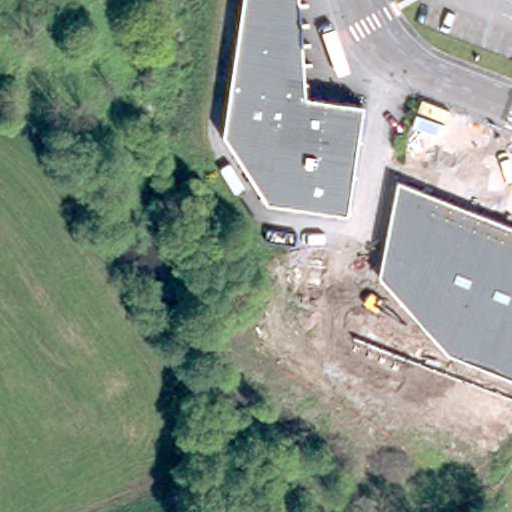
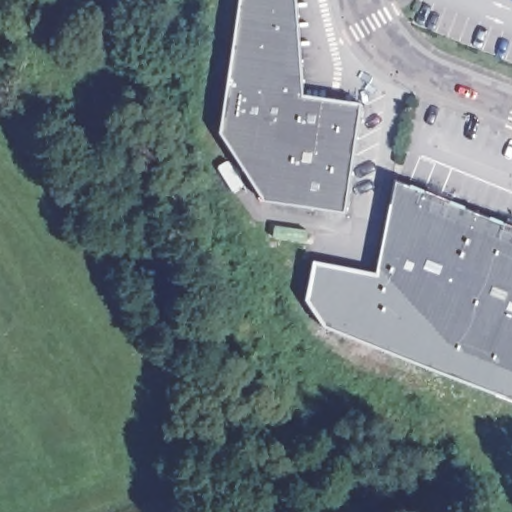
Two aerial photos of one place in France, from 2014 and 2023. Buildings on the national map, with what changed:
unchanged [(298,0),(305,93),(312,94),(362,101),(346,211),(295,204),(266,200),(222,131),(241,0),(298,0)]
unchanged [(377,273),(396,177),(512,223),(512,375),(445,348),(377,273)]
new [(512,375),(512,398),(327,327),(309,303),(317,262),(377,273),(445,348),(512,375)]

